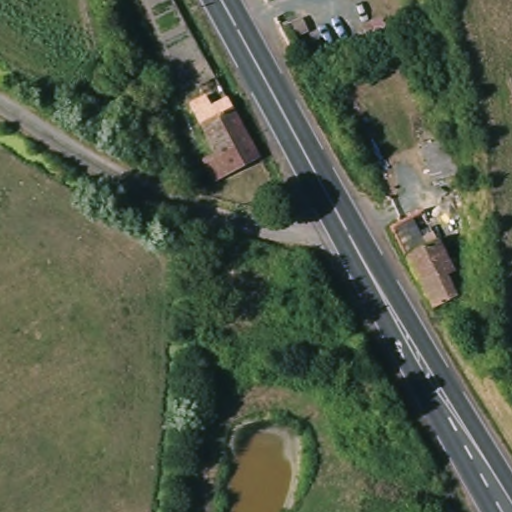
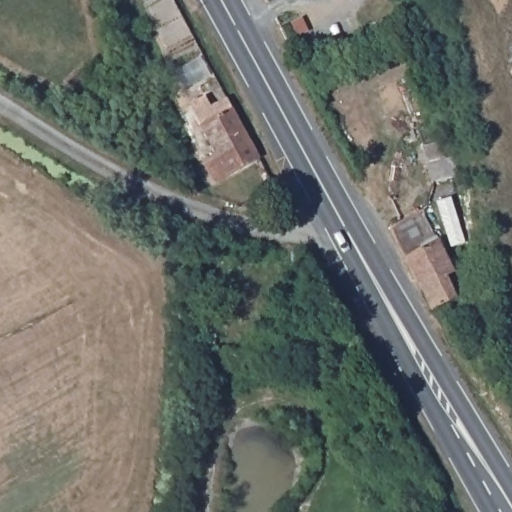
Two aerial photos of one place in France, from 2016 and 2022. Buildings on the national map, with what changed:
unchanged [(251,167),(202,192),(189,169),(203,162),(176,116),(212,97),(251,167)]
unchanged [(457,177),(433,186),(420,151),(444,142),(457,177)]
unchanged [(402,200),(396,189),(405,183),(412,194),(402,200)]
unchanged [(446,257),(439,261),(452,285),(425,300),(397,248),(382,219),(396,211),(411,241),(432,231),(446,257)]

